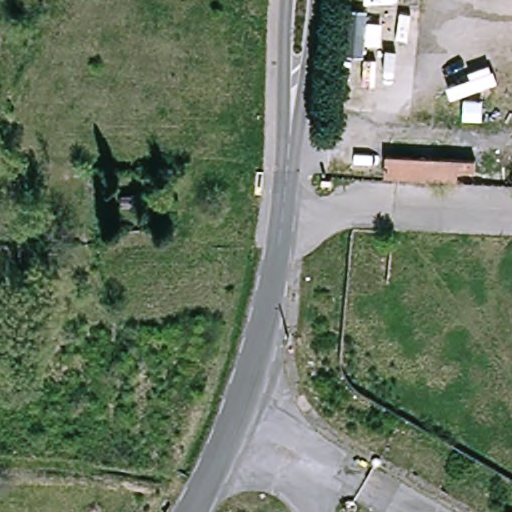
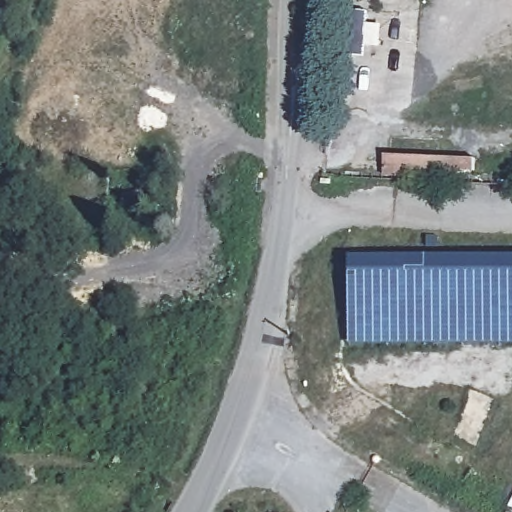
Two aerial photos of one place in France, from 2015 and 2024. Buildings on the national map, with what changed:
unchanged [(478,175),(462,172),(460,182),(387,175),(390,148),(480,160),(478,175)]
new [(512,258),(512,345),(345,347),(345,261),(512,258)]

